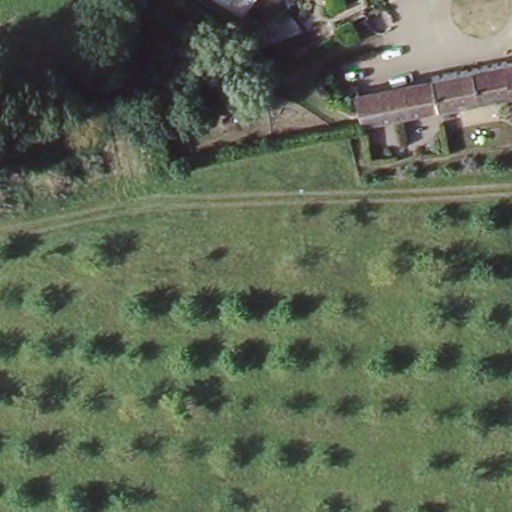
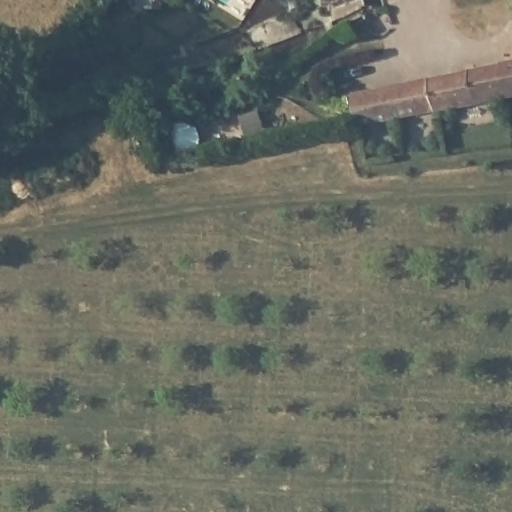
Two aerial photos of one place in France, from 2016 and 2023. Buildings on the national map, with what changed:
unchanged [(422,74),(512,55),(512,91),(431,110),(422,74)]
unchanged [(351,90),(422,74),(431,110),(360,125),(351,90)]

